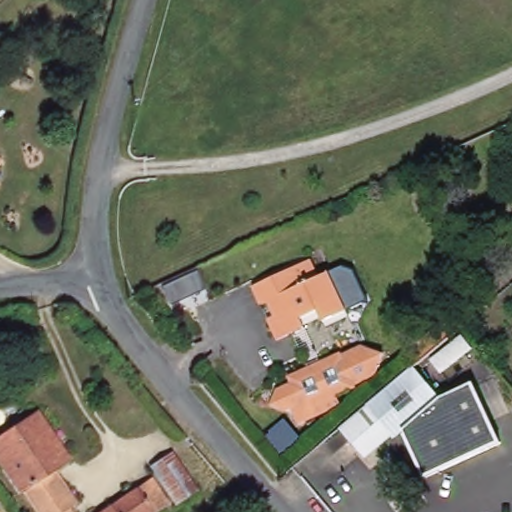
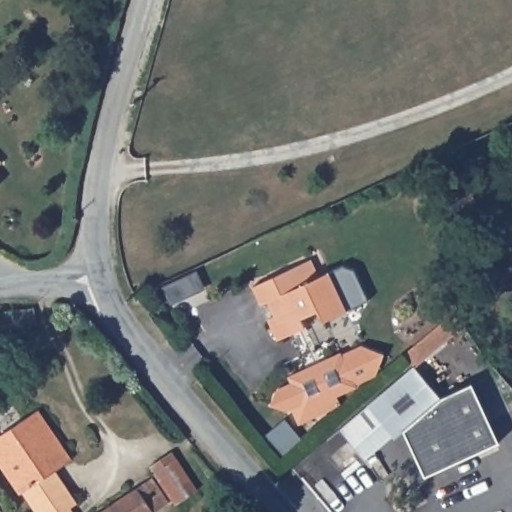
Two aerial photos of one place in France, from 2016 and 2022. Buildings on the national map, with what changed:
unchanged [(1,166),(0,167),(0,164),(1,166)]
unchanged [(256,305),(248,288),(290,270),(298,286),(324,274),(342,310),(319,321),(314,310),(295,318),(300,328),(272,341),(263,320),(256,305)]
unchanged [(33,310),(35,322),(10,326),(9,320),(4,321),(3,312),(33,310)]
unchanged [(345,348),(346,350),(366,341),(388,350),(380,371),(360,380),(361,382),(341,392),(345,401),(303,420),(296,405),(291,407),(276,401),(281,385),(296,379),(293,372),(345,348)]
unchanged [(441,399),(446,405),(473,383),(501,442),(426,478),(403,431),(394,438),(388,431),(361,453),(340,430),(414,367),(441,399)]
unchanged [(18,500),(16,501),(0,477),(0,439),(33,417),(67,466),(51,476),(73,509),(69,512),(27,512),(18,500)]
unchanged [(166,460),(191,496),(171,510),(146,473),(166,460)]
unchanged [(147,485),(163,510),(161,512),(107,512),(147,485)]

